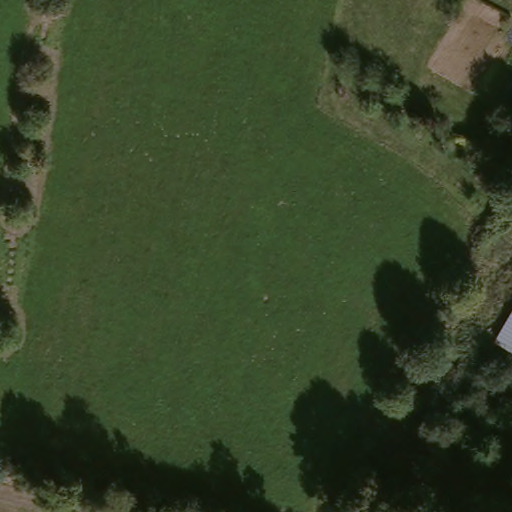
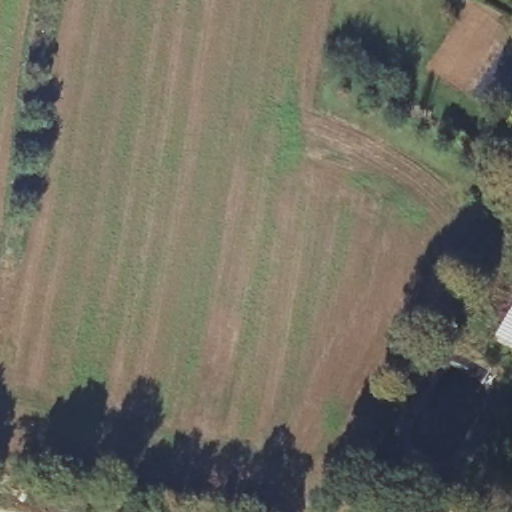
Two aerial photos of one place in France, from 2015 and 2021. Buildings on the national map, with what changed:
unchanged [(512,349),(497,340),(512,315),(512,349)]

